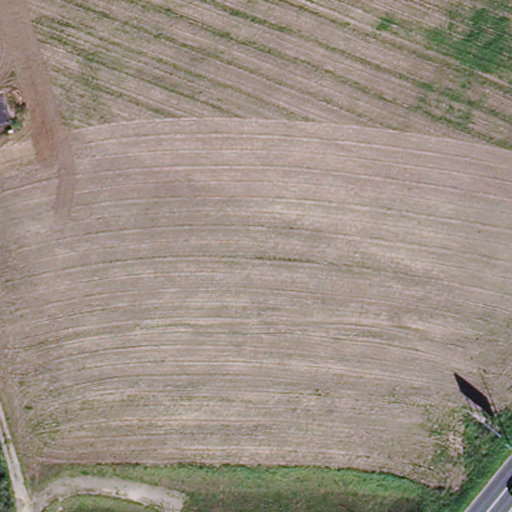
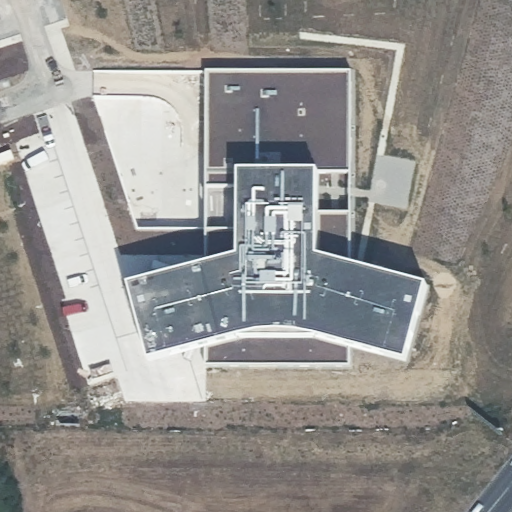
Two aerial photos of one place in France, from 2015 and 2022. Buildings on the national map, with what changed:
new [(352,76),(348,262),(426,281),(407,357),(318,333),(249,331),(146,358),(124,280),(204,260),(205,75),(352,76)]

